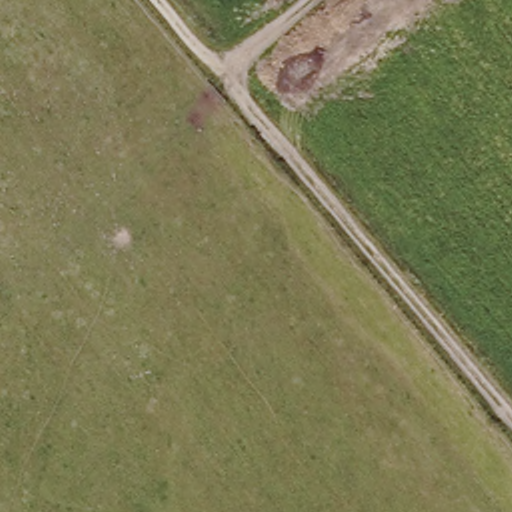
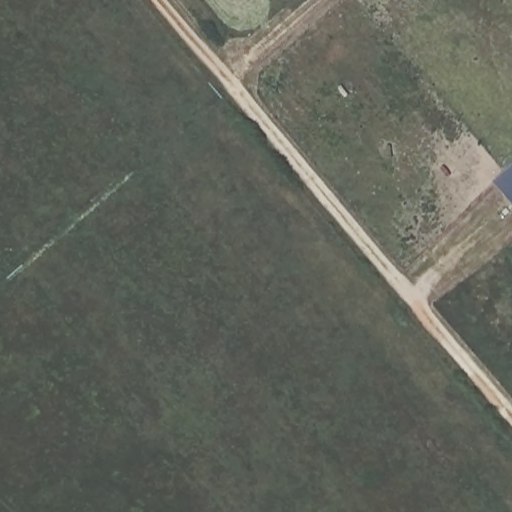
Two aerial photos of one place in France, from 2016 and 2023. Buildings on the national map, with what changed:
new [(512,203),(496,185),(512,172),(512,203)]

